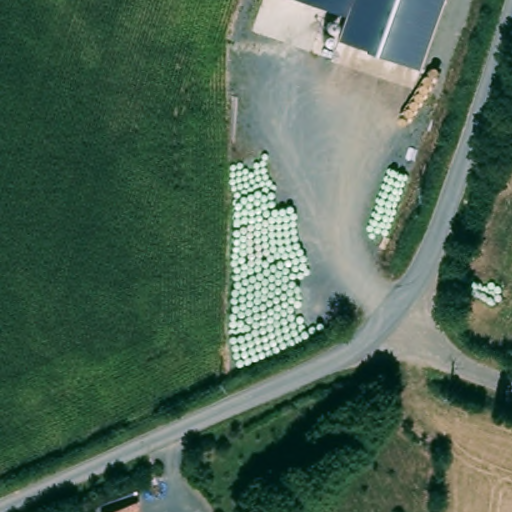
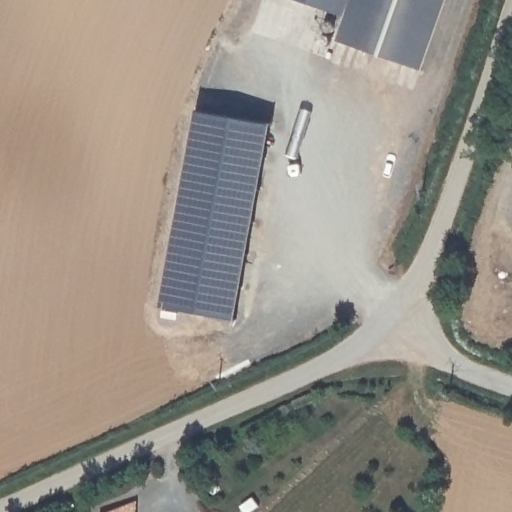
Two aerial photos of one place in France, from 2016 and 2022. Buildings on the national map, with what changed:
unchanged [(345,18),(298,0),(446,0),(422,69),(338,39),(345,18)]
new [(236,318),(161,303),(198,110),(272,123),(236,318)]
unchanged [(468,226),(472,214),(483,217),(480,230),(468,226)]
unchanged [(152,498),(150,512),(111,512),(112,507),(152,498)]

